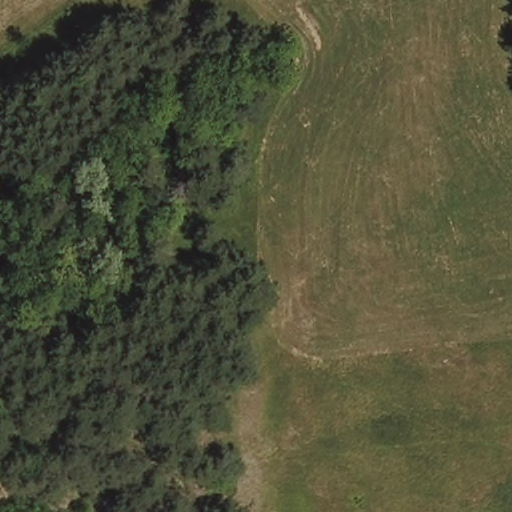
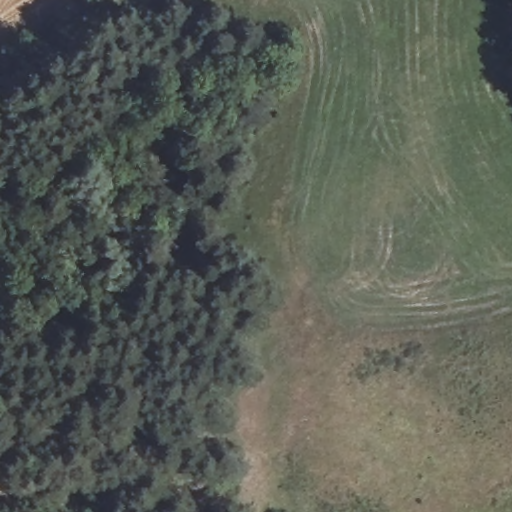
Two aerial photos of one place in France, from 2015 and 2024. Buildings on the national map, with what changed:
[]

